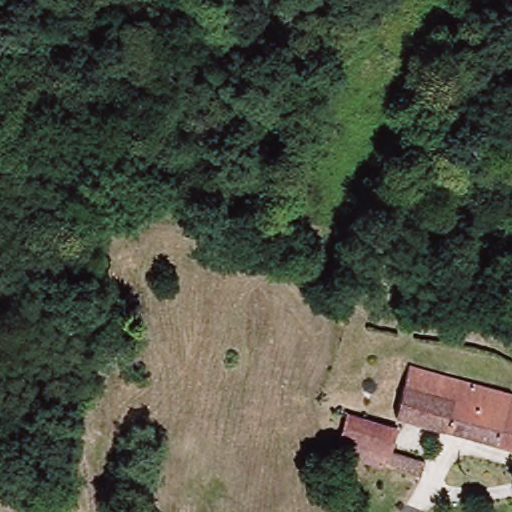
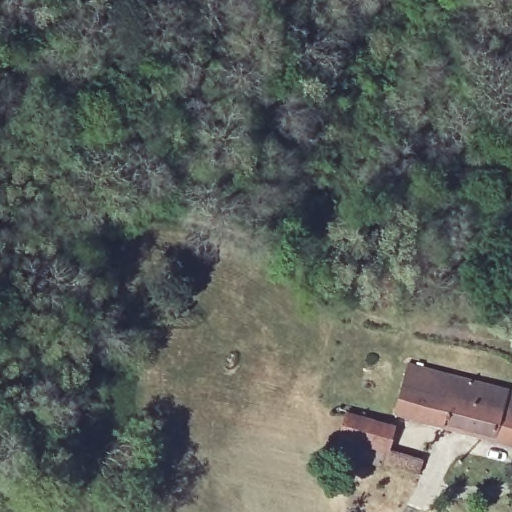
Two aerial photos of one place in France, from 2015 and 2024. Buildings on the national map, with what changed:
unchanged [(512,389),(512,444),(406,416),(422,365),(512,389)]
unchanged [(363,413),(400,424),(392,449),(356,438),(363,413)]
unchanged [(356,438),(392,449),(428,465),(424,480),(351,455),(356,438)]

